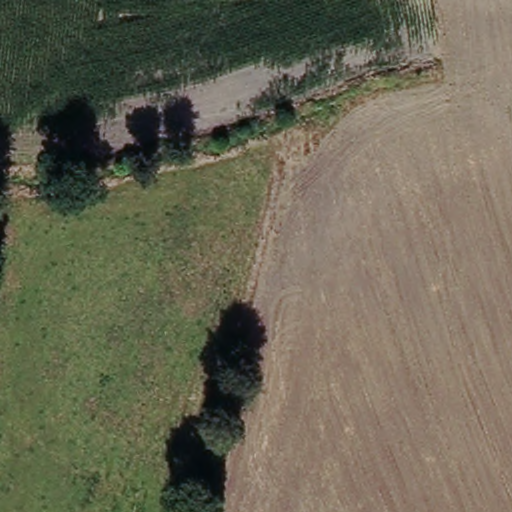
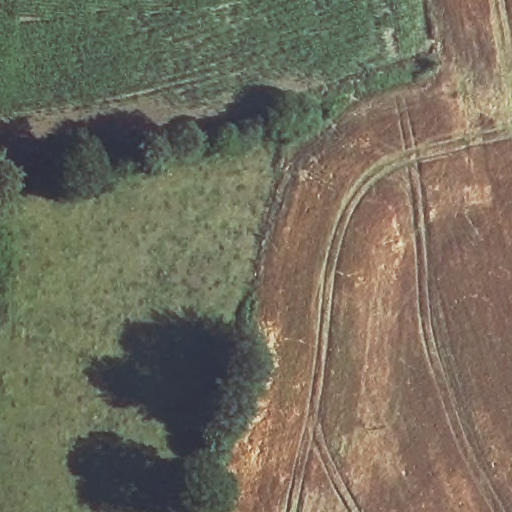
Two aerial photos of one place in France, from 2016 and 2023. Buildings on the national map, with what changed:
[]

